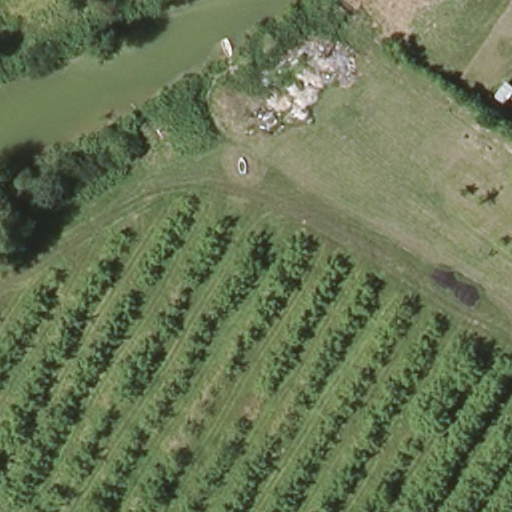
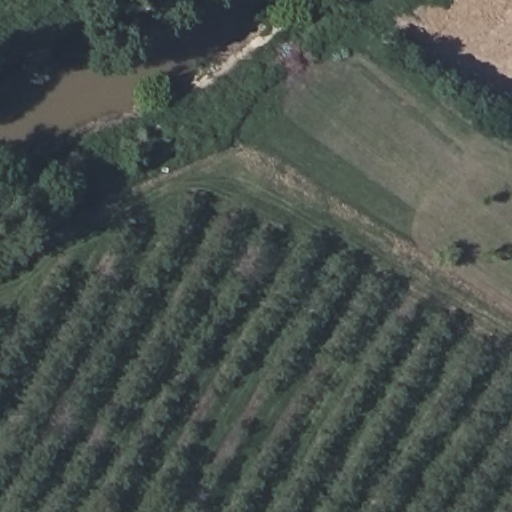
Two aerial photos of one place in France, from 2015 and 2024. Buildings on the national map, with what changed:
[]

